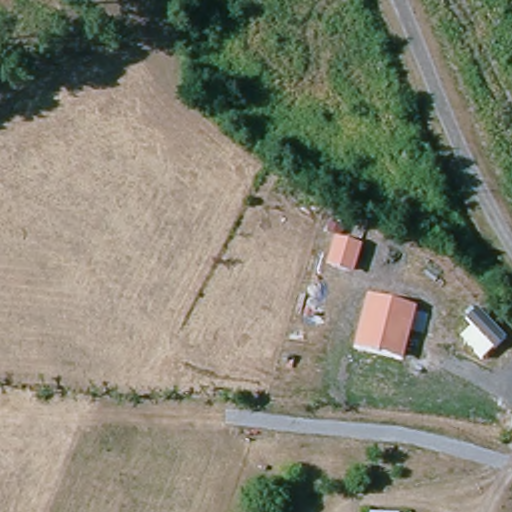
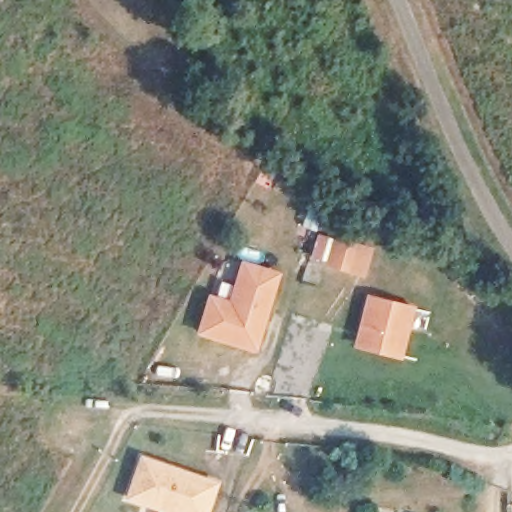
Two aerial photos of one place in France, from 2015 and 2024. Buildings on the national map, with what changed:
unchanged [(334,237),(362,245),(354,273),(327,266),(334,237)]
new [(198,334),(210,295),(230,301),(242,262),(282,273),(258,352),(198,334)]
unchanged [(417,306),(404,362),(355,350),(369,295),(417,306)]
new [(141,457),(222,483),(211,512),(164,512),(127,498),(141,457)]

